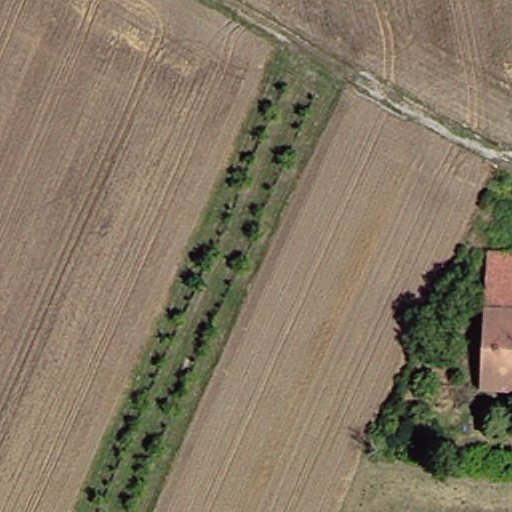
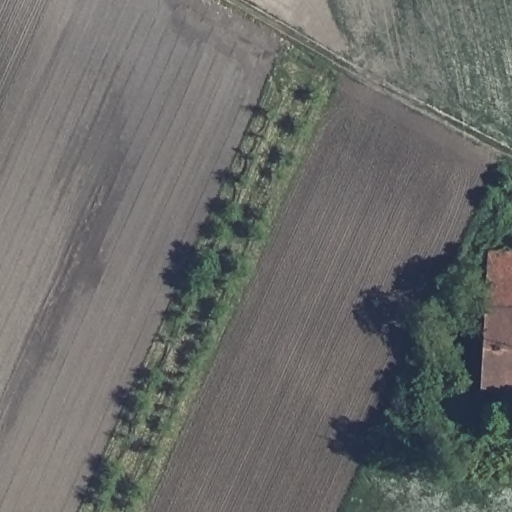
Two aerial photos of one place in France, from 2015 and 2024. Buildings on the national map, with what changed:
unchanged [(483,310),(484,275),(512,275),(512,312),(483,310)]
unchanged [(507,372),(507,395),(479,393),(483,310),(512,312),(512,373),(507,372)]
unchanged [(507,395),(507,372),(512,373),(512,395),(507,395)]

